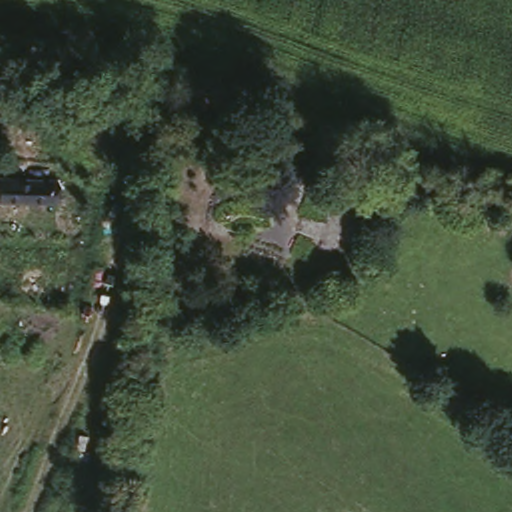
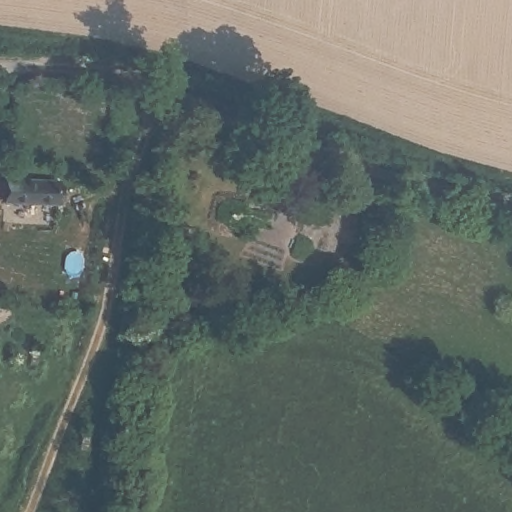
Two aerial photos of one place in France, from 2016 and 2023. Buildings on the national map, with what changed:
unchanged [(58,200),(4,190),(10,167),(62,179),(58,200)]

